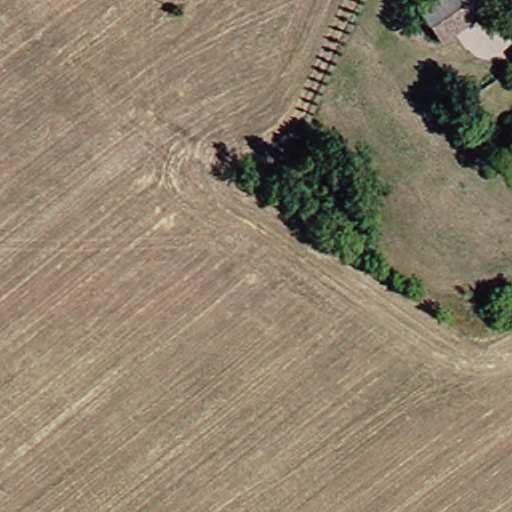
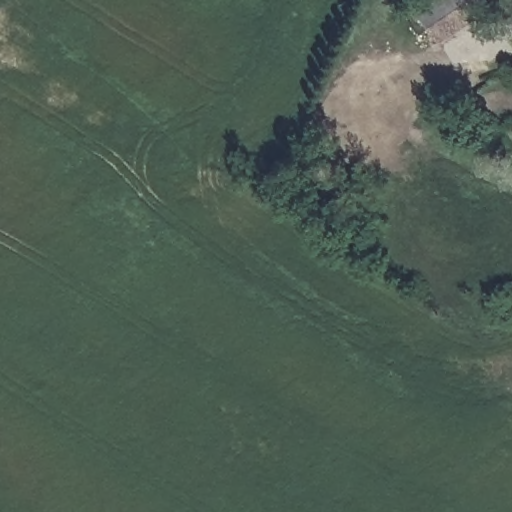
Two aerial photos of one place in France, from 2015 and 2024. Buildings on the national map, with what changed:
unchanged [(424,5),(432,0),(500,0),(505,7),(449,43),(424,5)]

